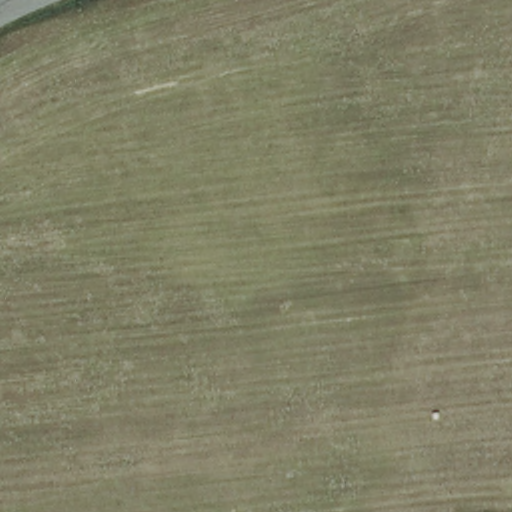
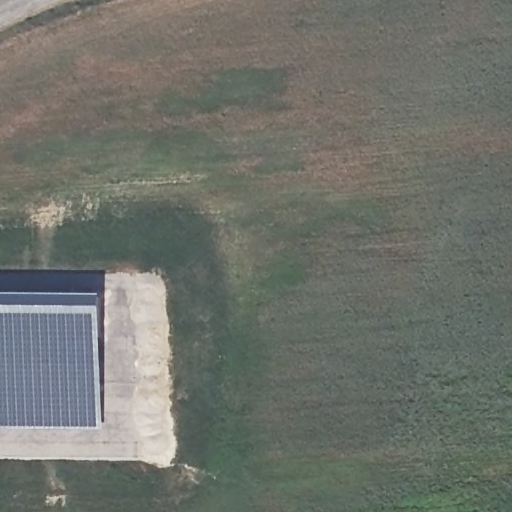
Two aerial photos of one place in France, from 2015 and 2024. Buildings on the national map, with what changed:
new [(108,295),(104,430),(0,430),(0,294),(108,295)]

